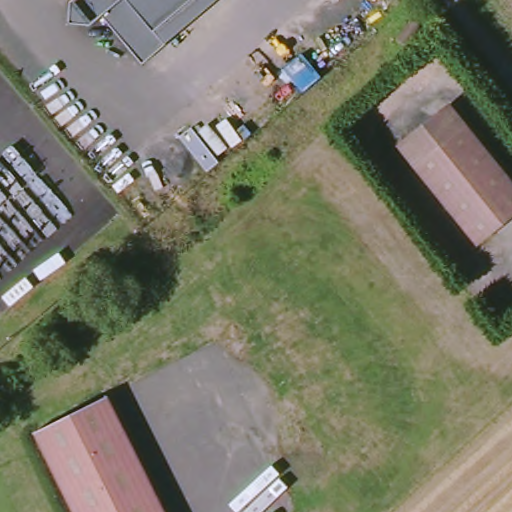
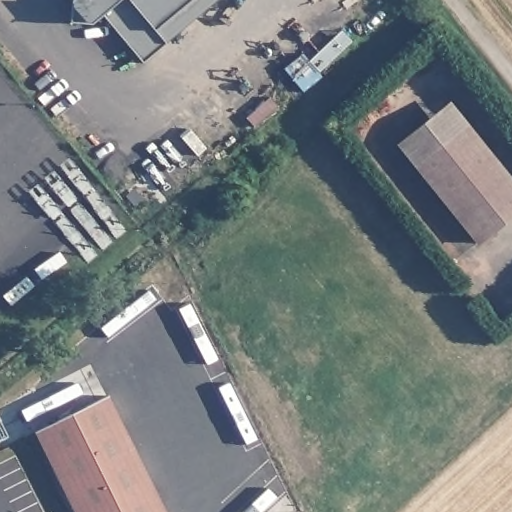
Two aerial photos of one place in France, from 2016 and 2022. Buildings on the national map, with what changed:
unchanged [(143,60),(102,13),(91,22),(69,21),(72,0),(215,0),(164,41),(143,60)]
unchanged [(446,115),(512,187),(512,192),(467,234),(398,159),(446,115)]
unchanged [(100,396),(164,512),(70,512),(28,436),(100,396)]

